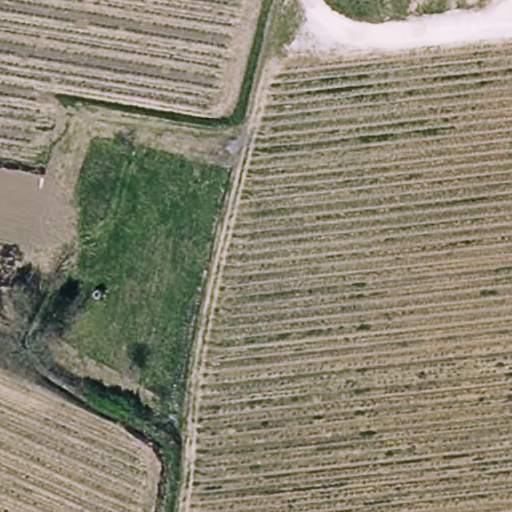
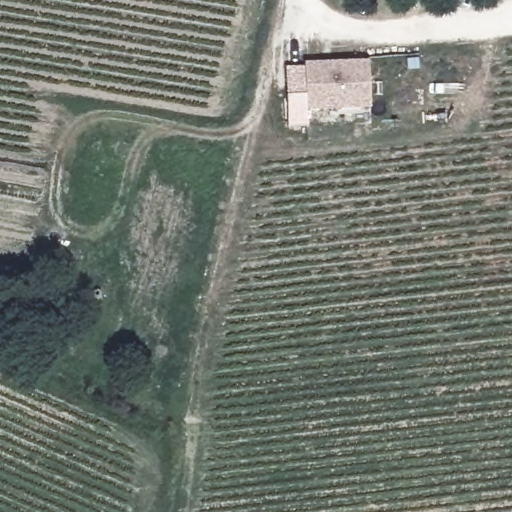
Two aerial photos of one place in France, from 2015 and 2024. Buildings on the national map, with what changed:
new [(306,95),(305,62),(370,60),(371,109),(307,111),(306,126),(289,127),(288,96),(306,95)]

